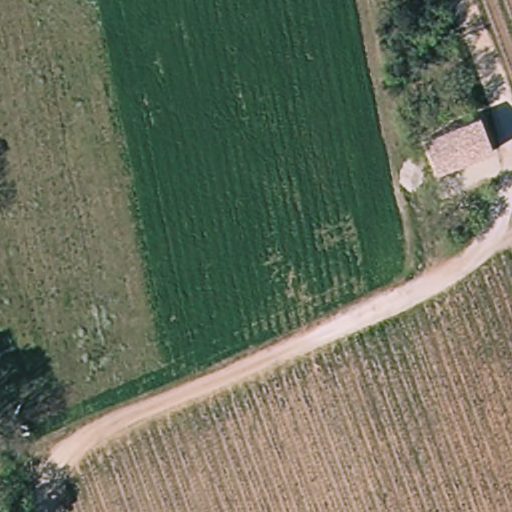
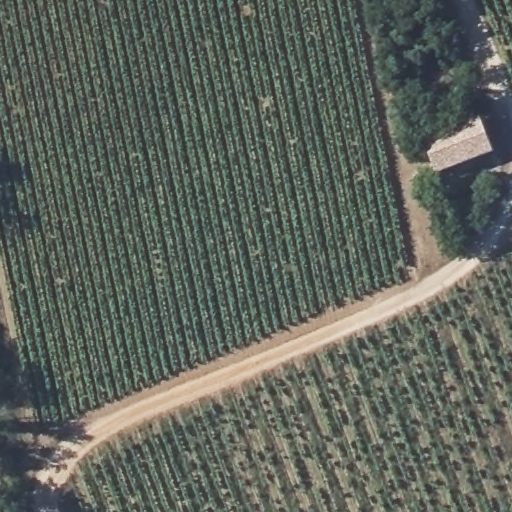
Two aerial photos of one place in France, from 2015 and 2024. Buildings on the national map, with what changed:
unchanged [(475,121),(485,147),(433,170),(422,146),(475,121)]

